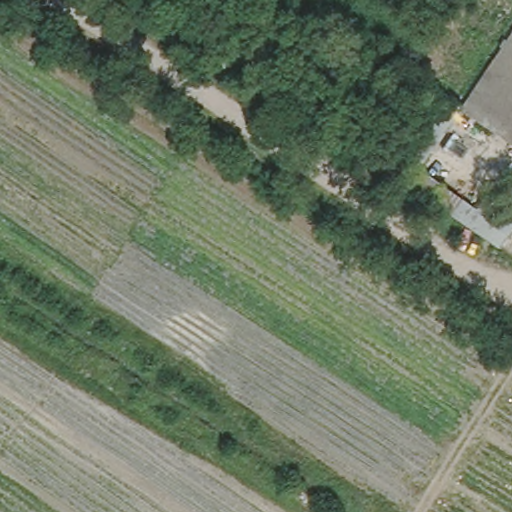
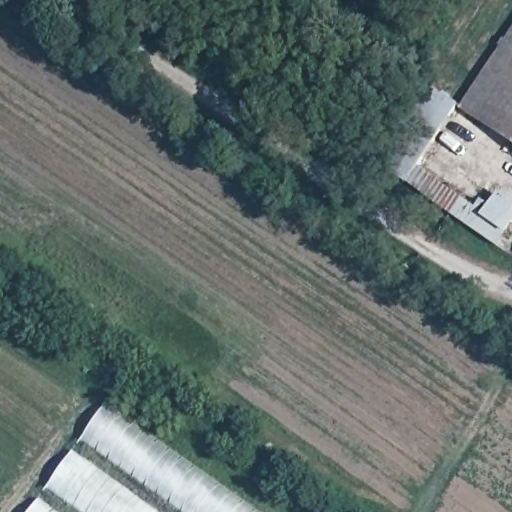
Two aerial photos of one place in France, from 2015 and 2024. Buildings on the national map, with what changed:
unchanged [(512,34),(512,147),(460,112),(512,34)]
unchanged [(459,110),(419,172),(407,187),(373,165),(423,89),(423,86),(459,110)]
unchanged [(512,229),(506,237),(497,250),(407,187),(419,172),(475,211),(480,204),(490,211),(498,196),(512,205),(512,229)]
new [(251,512),(33,512),(106,408),(251,512)]

